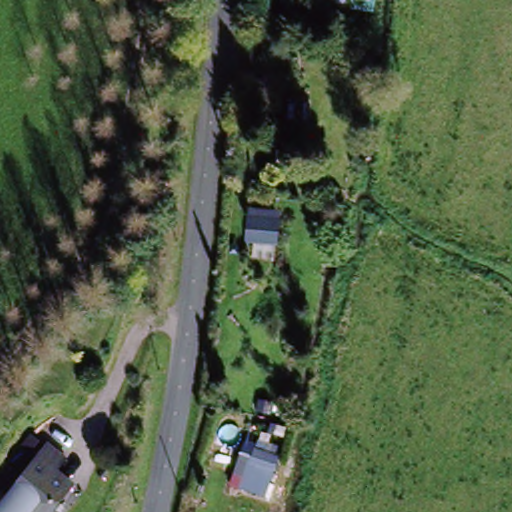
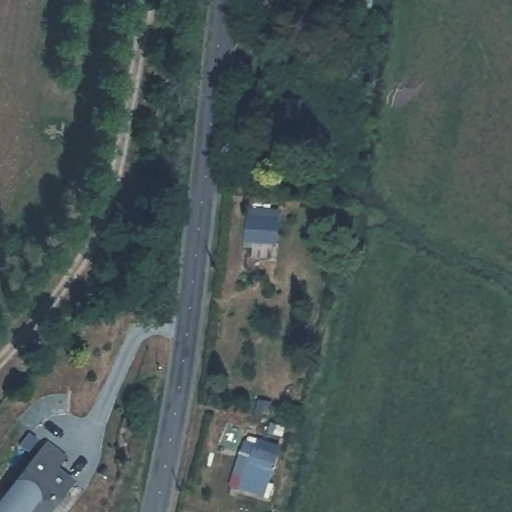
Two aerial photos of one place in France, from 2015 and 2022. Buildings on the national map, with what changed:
unchanged [(310,99),(308,162),(287,162),(288,136),(274,135),(277,97),(310,99)]
unchanged [(270,250),(247,249),(252,207),(272,209),(270,250)]
unchanged [(0,497),(3,494),(45,449),(59,460),(63,465),(53,475),(65,487),(40,512),(9,512),(0,504),(0,497)]
unchanged [(258,498),(235,490),(250,450),(270,455),(258,498)]

